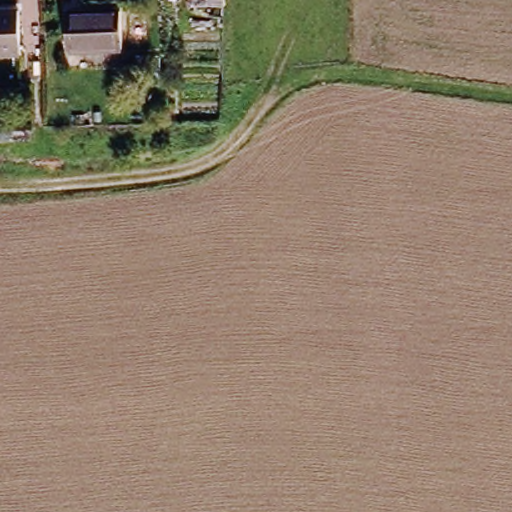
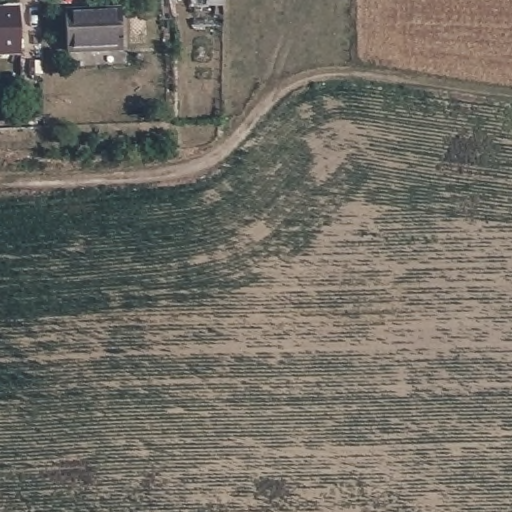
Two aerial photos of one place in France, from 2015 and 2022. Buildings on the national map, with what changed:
unchanged [(0,49),(0,6),(13,6),(15,49),(0,49)]
unchanged [(122,49),(67,51),(66,14),(120,12),(122,49)]

